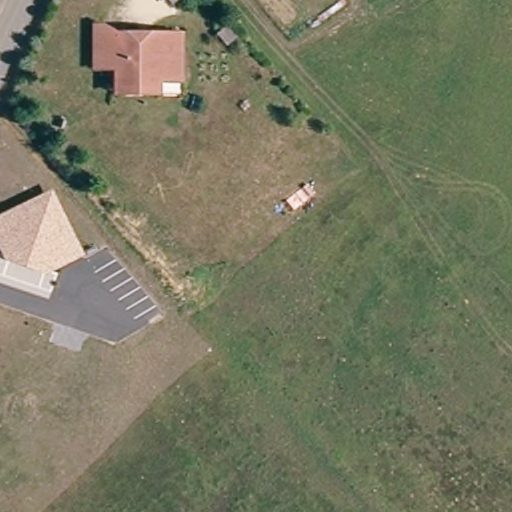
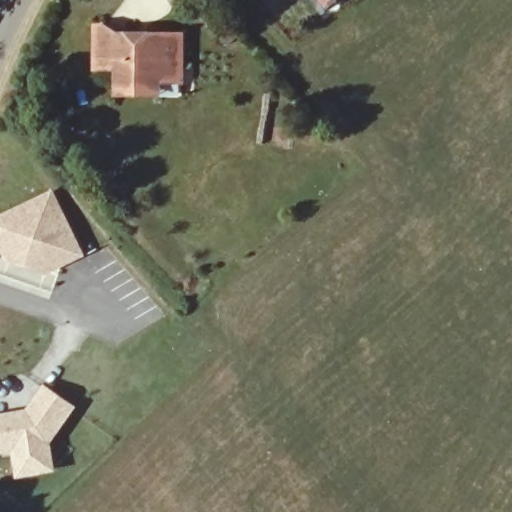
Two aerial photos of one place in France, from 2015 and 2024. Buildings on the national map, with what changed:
new [(175,7),(170,0),(183,0),(175,7)]
unchanged [(115,92),(116,80),(117,65),(93,63),(96,25),(132,28),(131,38),(148,39),(150,28),(182,30),(180,78),(157,77),(156,81),(156,96),(115,92)]
unchanged [(0,252),(0,214),(55,190),(87,256),(45,276),(4,261),(0,252)]
new [(78,406),(53,443),(58,474),(18,480),(14,453),(0,456),(0,414),(27,410),(45,385),(78,406)]

